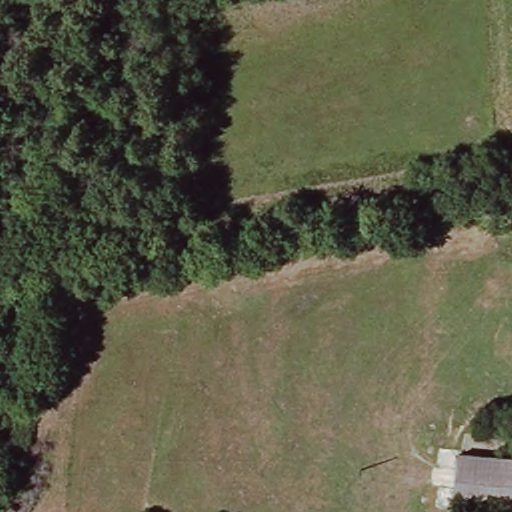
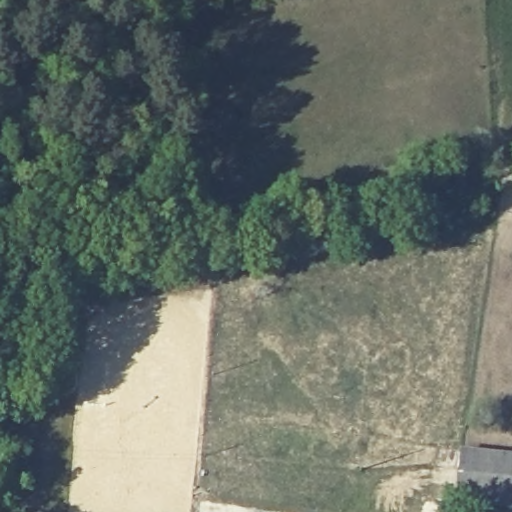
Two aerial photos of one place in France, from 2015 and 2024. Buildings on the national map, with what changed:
unchanged [(465,457),(512,462),(512,512),(507,512),(460,508),(465,457)]

